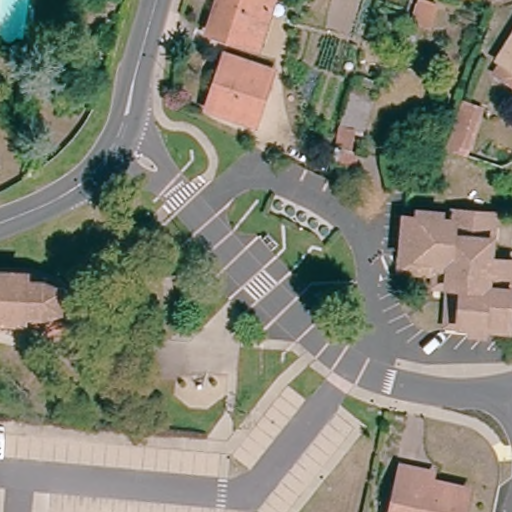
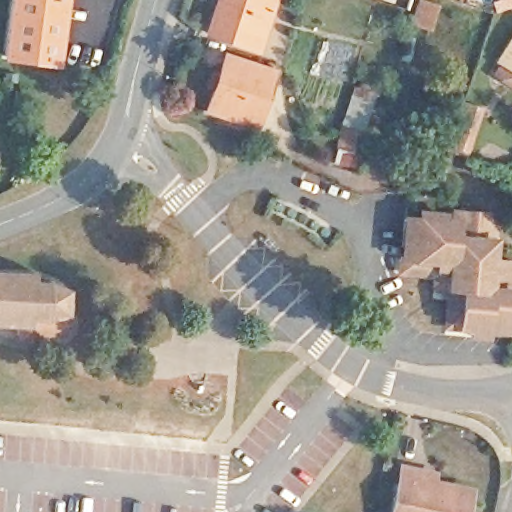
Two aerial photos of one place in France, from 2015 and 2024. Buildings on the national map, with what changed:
new [(56,67),(0,60),(0,53),(7,0),(64,0),(56,67)]
unchanged [(263,61),(199,39),(214,0),(281,0),(263,61)]
unchanged [(499,67),(512,48),(512,75),(499,67)]
unchanged [(266,79),(275,82),(256,133),(208,116),(227,65),(266,79)]
unchanged [(512,75),(512,93),(490,80),(499,67),(512,75)]
unchanged [(379,91),(375,102),(361,140),(355,139),(356,160),(361,161),(359,171),(333,167),(330,155),(336,153),(340,131),(352,90),(360,91),(362,82),(379,91)]
unchanged [(477,115),(462,162),(439,155),(454,107),(477,115)]
unchanged [(403,257),(404,221),(453,224),(453,212),(487,213),(487,228),(497,227),(497,248),(486,247),(486,262),(512,264),(512,274),(448,271),(448,261),(403,257)]
unchanged [(512,274),(512,331),(443,328),(448,271),(512,274)]
unchanged [(36,328),(34,337),(0,336),(0,276),(32,277),(32,285),(56,288),(65,298),(66,313),(60,322),(53,324),(48,326),(36,328)]
unchanged [(90,297),(88,342),(71,346),(71,336),(56,342),(53,324),(60,322),(66,313),(65,298),(90,297)]
unchanged [(428,498),(469,507),(468,512),(394,512),(401,480),(428,491),(428,498)]

